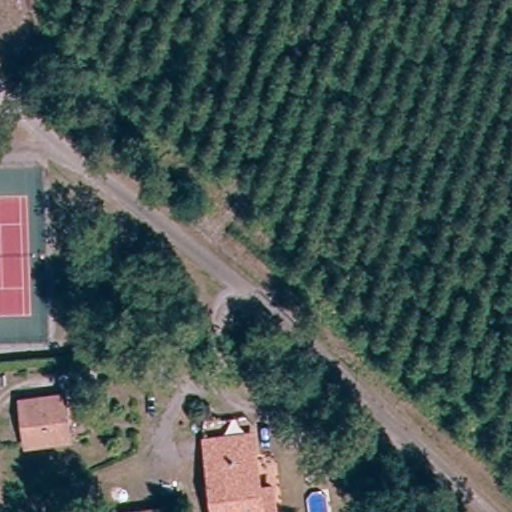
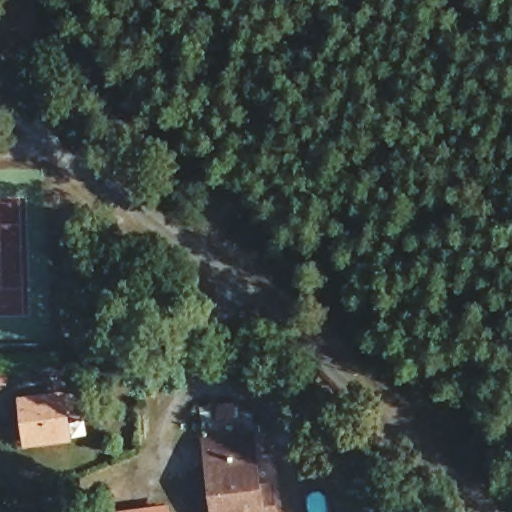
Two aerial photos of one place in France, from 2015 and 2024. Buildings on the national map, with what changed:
unchanged [(68,402),(69,439),(24,446),(20,409),(68,402)]
unchanged [(261,501),(275,501),(276,512),(213,512),(207,441),(255,440),(261,501)]
unchanged [(175,512),(127,512),(174,508),(175,512)]

